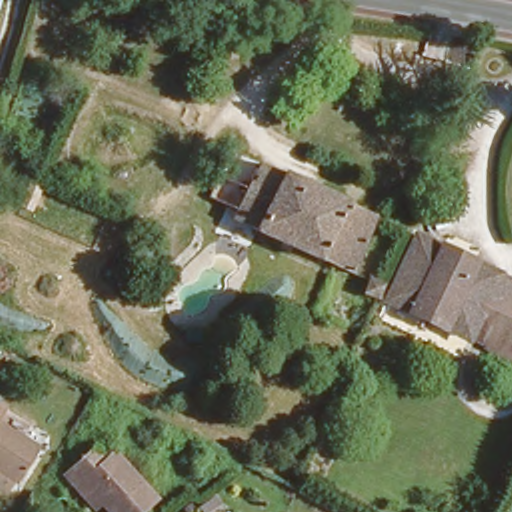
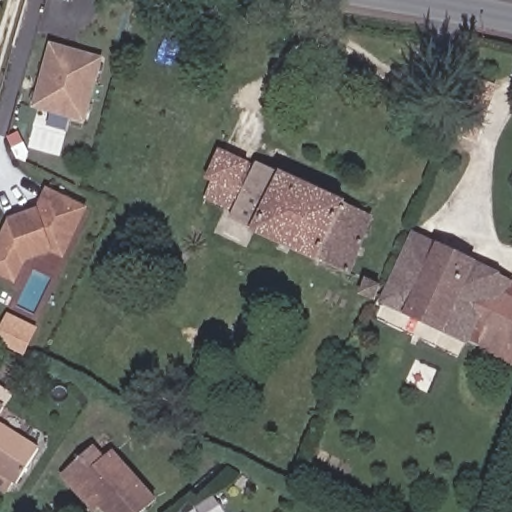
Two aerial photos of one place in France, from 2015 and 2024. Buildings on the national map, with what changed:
new [(86,124),(33,109),(50,42),(105,59),(86,124)]
new [(480,79),(495,85),(476,136),(461,131),(480,79)]
new [(221,148),(254,165),(239,194),(229,212),(205,199),(212,184),(205,180),(221,148)]
unchanged [(229,212),(239,194),(254,165),(257,159),(370,214),(340,271),(227,215),(229,212)]
new [(54,252),(24,262),(15,281),(0,274),(0,246),(12,220),(38,211),(46,190),(87,208),(65,257),(54,252)]
unchanged [(407,230),(497,273),(466,335),(459,350),(436,339),(443,323),(387,298),(395,280),(385,275),(407,230)]
unchanged [(497,273),(512,280),(512,359),(466,335),(497,273)]
unchanged [(20,474),(12,469),(7,484),(0,482),(0,417),(37,435),(20,474)]
unchanged [(70,486),(57,471),(91,443),(101,456),(111,447),(152,495),(131,512),(108,512),(100,502),(90,510),(70,486)]

